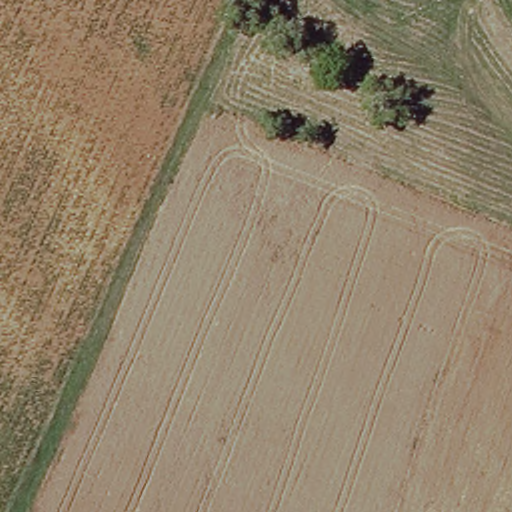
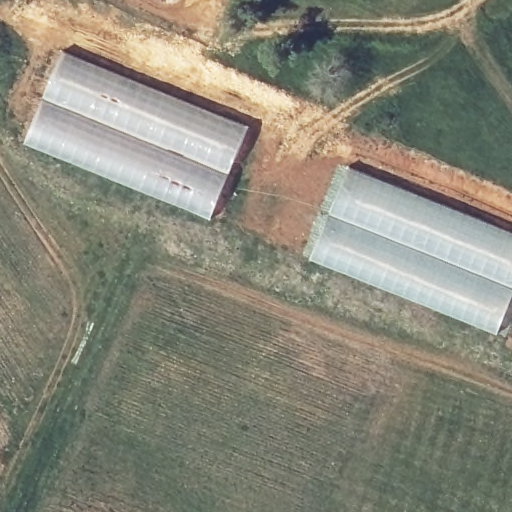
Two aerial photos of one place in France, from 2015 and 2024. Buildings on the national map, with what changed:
new [(62,52),(249,126),(210,219),(150,192),(23,142),(62,52)]
new [(344,166),(512,232),(512,298),(497,333),(387,287),(307,258),(344,166)]

